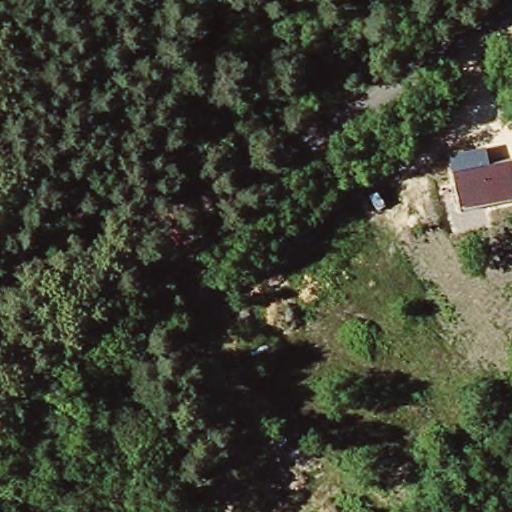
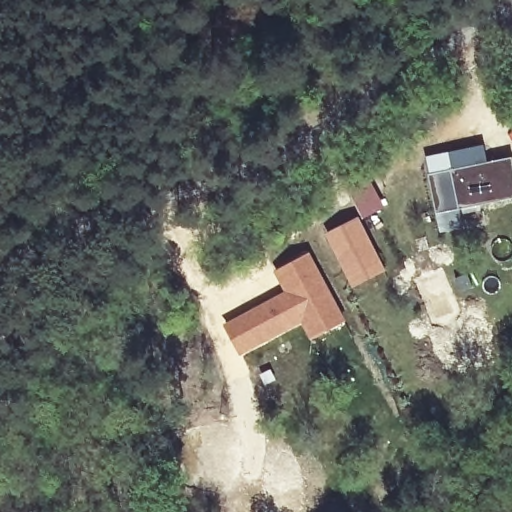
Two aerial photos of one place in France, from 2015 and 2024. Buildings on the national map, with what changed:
unchanged [(489,163),(512,159),(512,198),(459,209),(449,152),(485,145),(489,163)]
new [(365,180),(379,207),(363,216),(349,187),(365,180)]
new [(350,285),(343,272),(325,236),(355,220),(373,257),(380,270),(350,285)]
new [(283,291),(272,271),(309,251),(346,320),(309,340),(300,324),(239,356),(222,324),(283,291)]

